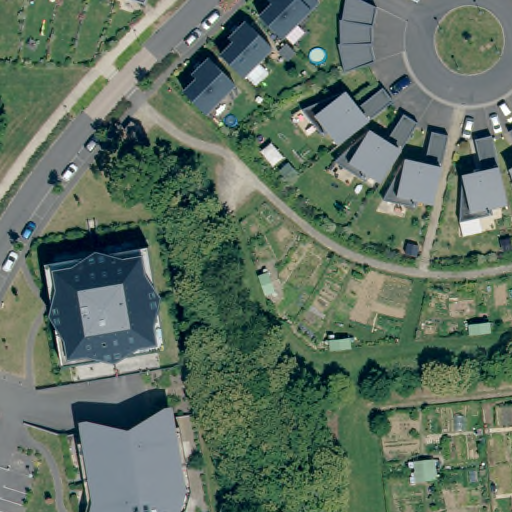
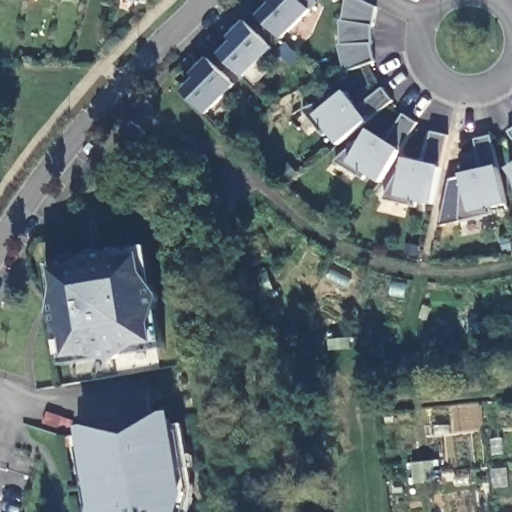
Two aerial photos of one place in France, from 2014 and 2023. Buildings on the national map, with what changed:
unchanged [(147,4),(134,0),(148,0),(147,4)]
unchanged [(319,3),(283,39),(260,17),(273,4),(269,0),(316,0),(319,3)]
unchanged [(345,73),(339,45),(341,44),(341,20),(343,20),(346,0),(362,0),(378,8),(375,26),(373,26),(373,44),(372,44),(376,62),(345,73)]
unchanged [(418,2),(414,0),(420,0),(418,2)]
unchanged [(230,39),(247,22),(273,49),(244,78),(222,55),(234,43),(230,39)]
unchanged [(236,85),(207,114),(185,92),(198,79),(193,75),(210,59),(236,85)]
unchanged [(345,92),(358,108),(384,88),(394,101),(393,102),(349,137),(339,145),(329,132),(324,136),(303,109),(345,92)]
unchanged [(370,131),(387,142),(404,114),(419,123),(381,183),(368,174),(364,180),(335,162),(370,131)]
unchanged [(147,134),(140,142),(126,130),(134,122),(147,134)]
unchanged [(512,130),(512,136),(509,132),(512,130)]
unchanged [(425,164),(433,132),(450,136),(434,205),(418,201),(417,208),(383,200),(406,160),(425,164)]
unchanged [(483,172),(476,139),(492,136),(508,204),(492,208),(494,215),(460,222),(463,176),(483,172)]
unchanged [(512,169),(512,177),(510,171),(512,169)]
unchanged [(60,288),(57,270),(75,267),(98,252),(125,259),(143,256),(145,274),(161,297),(154,324),(157,342),(139,345),(116,360),(89,353),(71,356),(68,338),(53,314),(57,300),(60,288)]
unchanged [(178,512),(97,512),(84,434),(101,431),(117,434),(139,431),(153,422),(170,419),(183,494),(178,512)]
unchanged [(438,486),(417,489),(415,469),(435,466),(438,486)]

